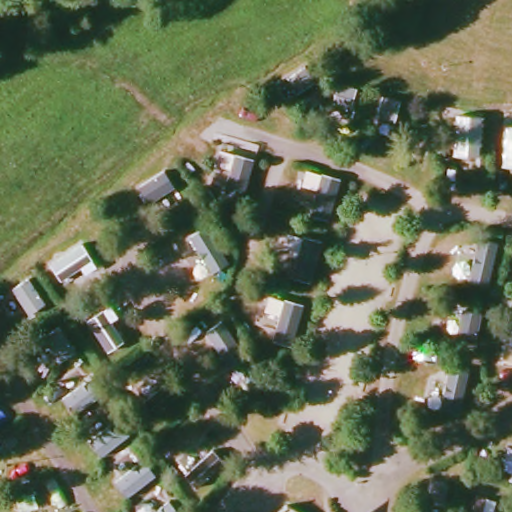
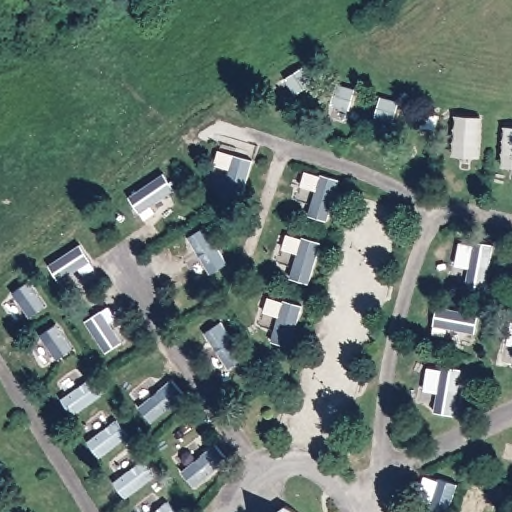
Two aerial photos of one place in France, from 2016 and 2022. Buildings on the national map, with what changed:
unchanged [(261,156),(248,196),(230,190),(238,150),(261,156)]
unchanged [(183,190),(152,206),(142,188),(171,174),(183,190)]
unchanged [(320,175),(342,182),(332,220),(310,215),(320,175)]
unchanged [(305,236),(324,242),(310,281),(293,280),(305,236)]
unchanged [(94,268),(64,283),(52,263),(79,246),(94,268)]
unchanged [(468,247),(500,254),(491,284),(465,278),(468,247)]
unchanged [(40,273),(55,305),(33,318),(15,290),(40,273)]
unchanged [(305,303),(293,346),(273,340),(285,296),(305,303)]
unchanged [(444,305),(486,313),(482,337),(440,326),(444,305)]
unchanged [(113,313),(135,345),(112,358),(91,326),(113,313)]
unchanged [(68,321),(86,352),(62,366),(43,337),(68,321)]
unchanged [(512,321),(512,338),(507,337),(512,321)]
unchanged [(477,372),(468,410),(447,408),(453,367),(477,372)]
unchanged [(102,375),(113,397),(80,418),(65,397),(102,375)]
unchanged [(180,380),(193,399),(160,422),(142,405),(180,380)]
unchanged [(127,416),(140,436),(105,461),(90,441),(127,416)]
unchanged [(215,453),(232,468),(202,494),(188,479),(215,453)]
unchanged [(152,460),(165,480),(133,503),(118,481),(152,460)]
unchanged [(177,502),(183,512),(161,512),(177,502)]
unchanged [(297,511),(298,512),(296,512),(297,511)]

